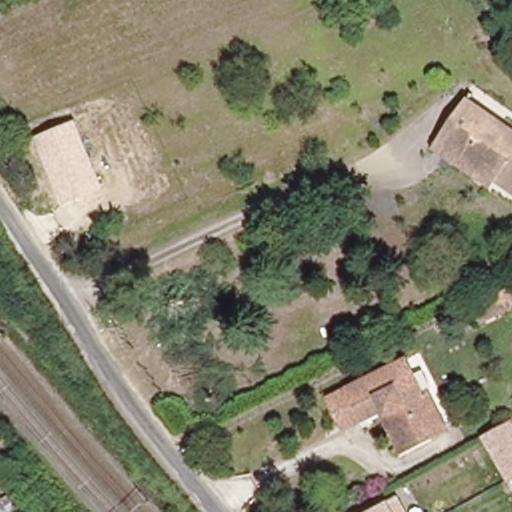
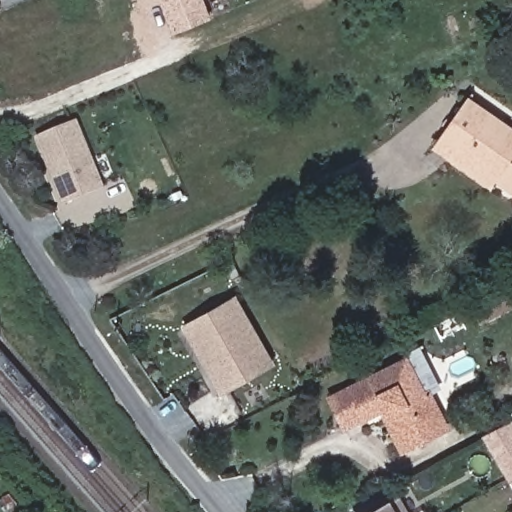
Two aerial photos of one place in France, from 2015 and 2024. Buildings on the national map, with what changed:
new [(212,19),(174,33),(160,0),(205,0),(212,19)]
unchanged [(438,149),(445,140),(472,102),(512,128),(512,188),(496,176),(490,184),(438,149)]
unchanged [(104,189),(65,205),(39,136),(79,120),(104,189)]
unchanged [(469,301),(503,284),(512,301),(512,309),(481,324),(469,301)]
new [(238,294),(277,364),(221,396),(181,326),(238,294)]
unchanged [(384,417),(378,403),(367,408),(353,415),(339,387),(354,380),(409,353),(427,387),(432,385),(447,417),(451,424),(427,436),(409,444),(402,449),(384,417)]
unchanged [(510,483),(483,435),(512,420),(512,482),(510,483)]
unchanged [(400,496),(410,512),(371,512),(392,500),(400,496)]

